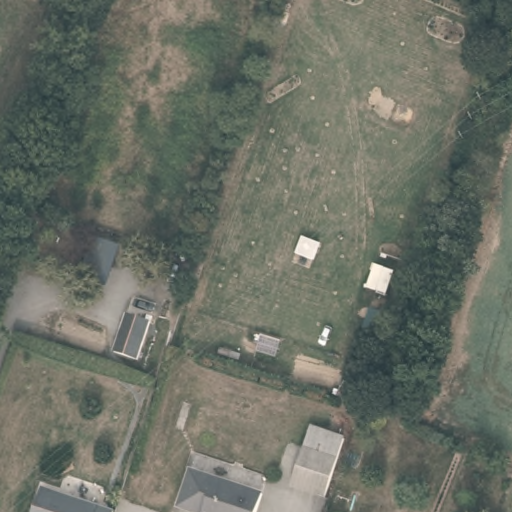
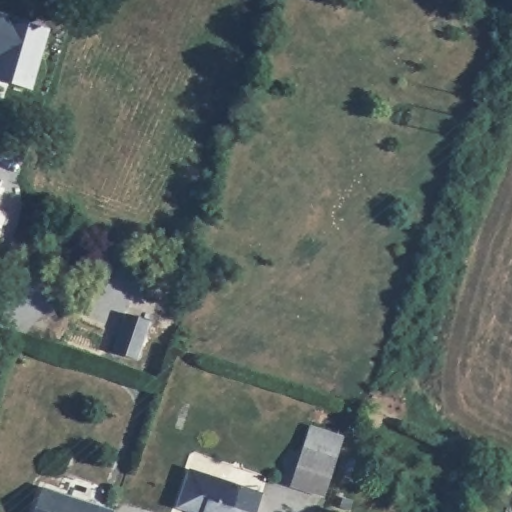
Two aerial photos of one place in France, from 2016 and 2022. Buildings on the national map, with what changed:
new [(34,90),(0,80),(0,14),(51,28),(34,90)]
new [(0,183),(0,180),(1,180),(0,183)]
new [(96,239),(121,248),(108,286),(83,278),(96,239)]
unchanged [(137,367),(112,359),(125,319),(150,328),(137,367)]
unchanged [(325,486),(292,474),(306,436),(339,447),(325,486)]
unchanged [(185,512),(173,507),(186,469),(260,496),(255,512),(185,512)]
unchanged [(99,512),(30,512),(37,491),(99,512)]

